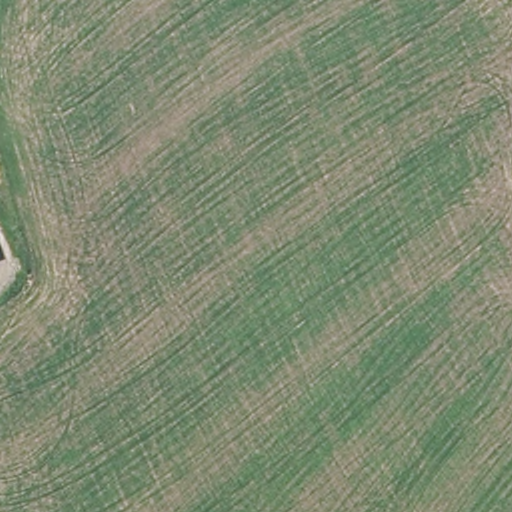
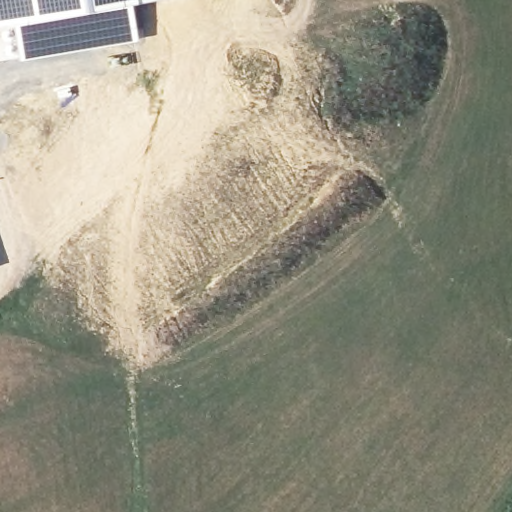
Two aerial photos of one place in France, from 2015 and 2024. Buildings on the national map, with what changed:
new [(135,39),(71,52),(21,58),(16,26),(0,27),(0,0),(154,0),(131,5),(135,39)]

